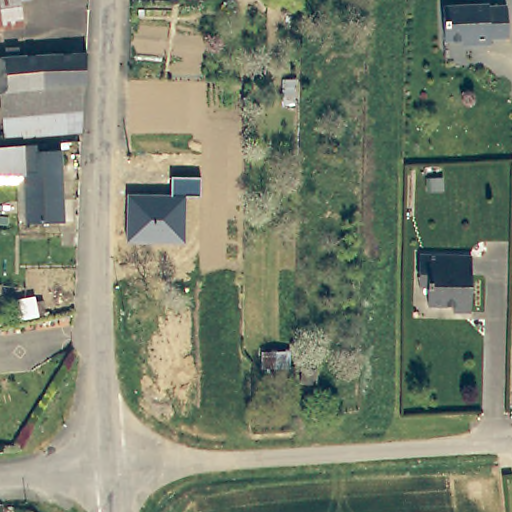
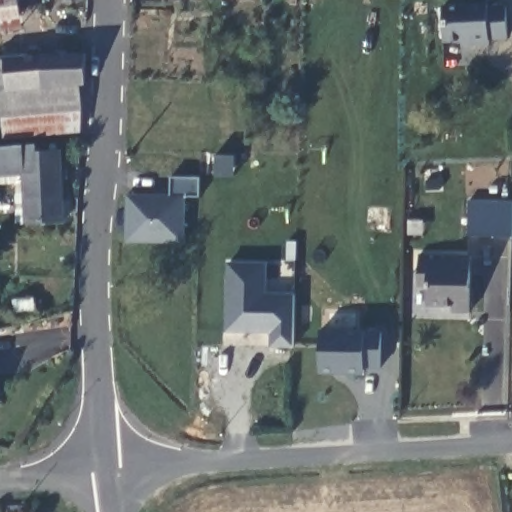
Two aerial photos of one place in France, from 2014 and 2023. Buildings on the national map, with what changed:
unchanged [(0,0),(24,0),(16,1),(19,27),(0,30),(0,0)]
unchanged [(486,2),(504,1),(507,32),(487,34),(487,39),(470,40),(469,35),(461,36),(443,37),(441,2),(461,0),(469,0),(486,0),(486,2)]
unchanged [(0,61),(9,60),(8,50),(21,50),(21,59),(89,55),(88,85),(81,86),(5,95),(0,96),(0,61)]
unchanged [(8,140),(5,95),(81,86),(80,133),(8,140)]
unchanged [(66,224),(29,226),(38,177),(0,177),(0,151),(38,147),(38,153),(63,152),(66,224)]
unchanged [(185,195),(184,241),(127,241),(126,194),(173,193),(172,177),(199,177),(199,195),(185,195)]
new [(469,197),(512,198),(512,232),(469,232),(469,197)]
unchanged [(471,312),(460,311),(452,311),(452,305),(427,305),(427,286),(417,285),(417,274),(418,256),(460,257),(472,257),(471,312)]
new [(268,291),(296,292),(295,347),(272,347),(272,333),(226,333),(227,261),(268,263),(268,291)]
new [(383,369),(364,369),(366,374),(320,373),(320,328),(367,329),(381,330),(383,369)]

